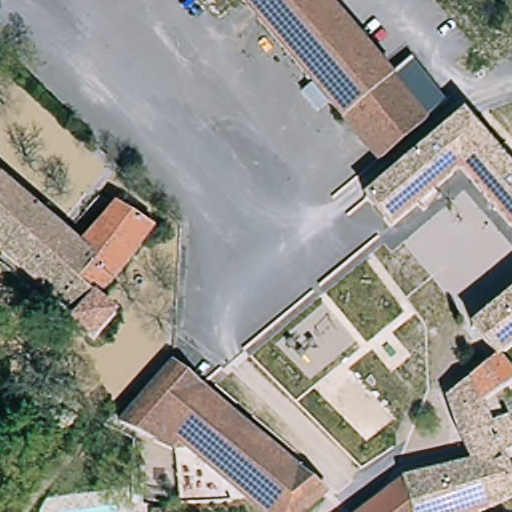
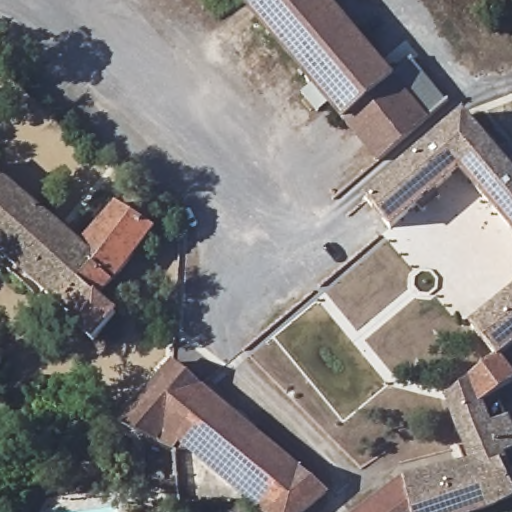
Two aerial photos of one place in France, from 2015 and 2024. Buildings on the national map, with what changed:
unchanged [(377,164),(242,0),(325,0),(426,121),(377,164)]
unchanged [(392,230),(366,199),(465,117),(512,172),(512,230),(462,171),(392,230)]
unchanged [(0,263),(0,259),(9,247),(0,240),(0,176),(77,241),(114,196),(150,225),(98,298),(117,315),(93,337),(70,315),(78,307),(46,280),(35,292),(0,263)]
unchanged [(446,398),(495,359),(471,330),(512,296),(512,384),(481,406),(494,425),(508,418),(512,427),(512,495),(475,512),(364,512),(405,481),(471,462),(446,398)]
unchanged [(237,488),(206,460),(209,499),(181,503),(182,495),(186,452),(146,432),(127,422),(176,363),(324,494),(305,512),(264,512),(237,488)]

